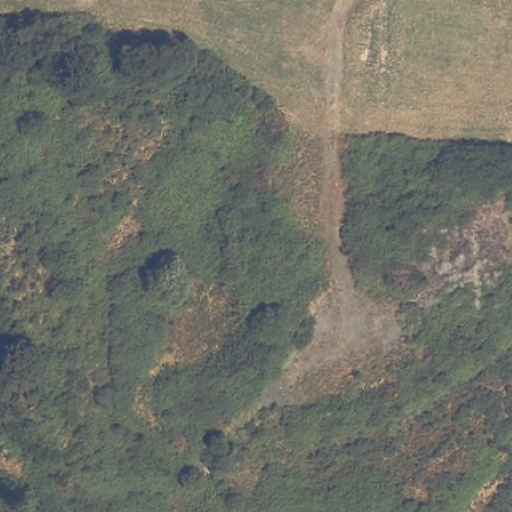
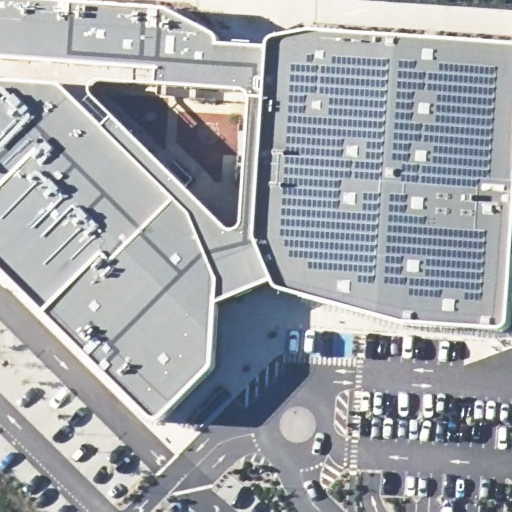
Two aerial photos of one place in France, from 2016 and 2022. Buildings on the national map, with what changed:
new [(172,10),(221,35),(225,40),(225,46),(272,49),(274,42),(280,38),(315,31),(512,45),(512,330),(509,333),(501,333),(407,326),(280,290),(277,284),(222,306),(217,370),(162,423),(157,424),(152,421),(0,270),(0,2),(36,0),(172,10)]

